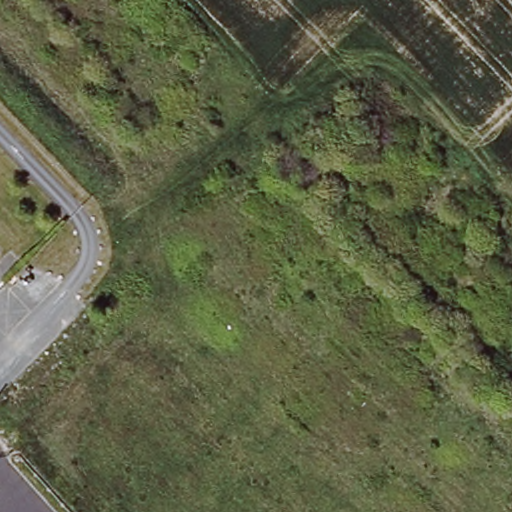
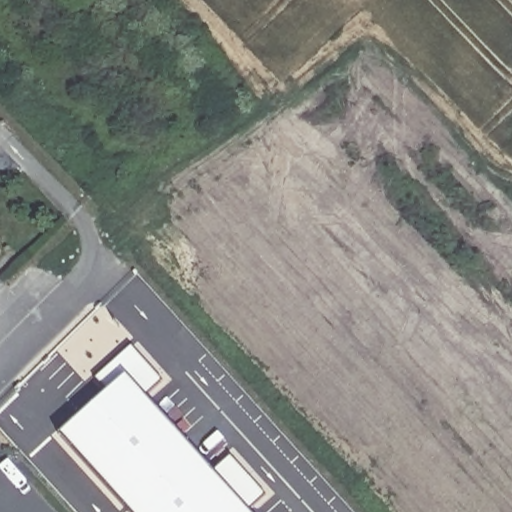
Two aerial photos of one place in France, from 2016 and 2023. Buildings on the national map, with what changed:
new [(94,380),(131,348),(163,383),(144,399),(211,473),(229,458),(264,497),(248,512),(125,512),(58,437),(106,394),(94,380)]

